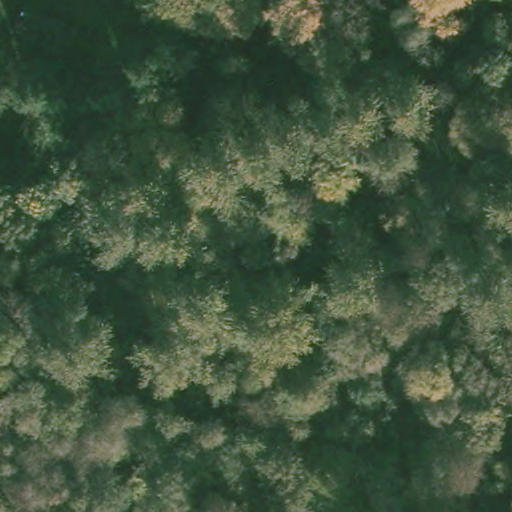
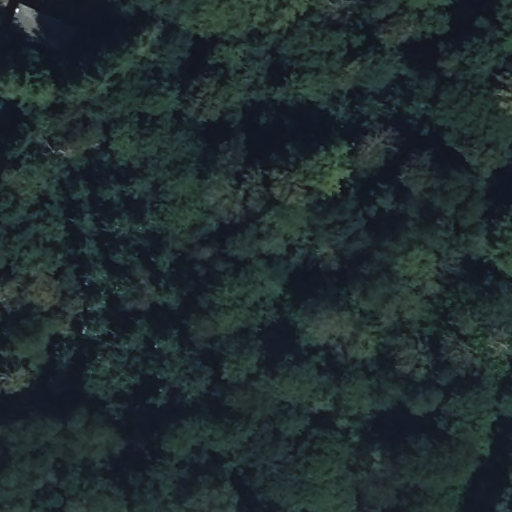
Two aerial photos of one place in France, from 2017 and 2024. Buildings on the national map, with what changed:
unchanged [(65,54),(10,27),(25,3),(77,25),(65,54)]

